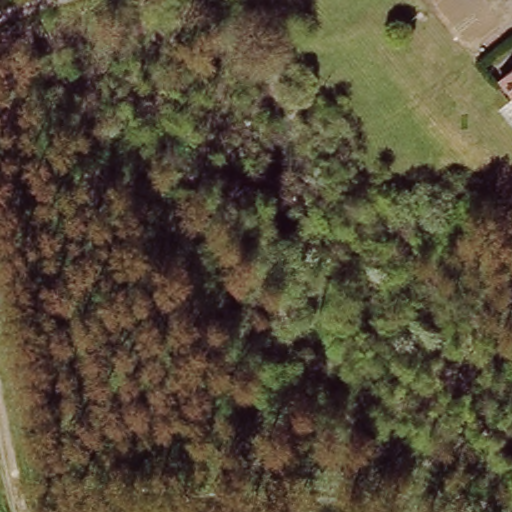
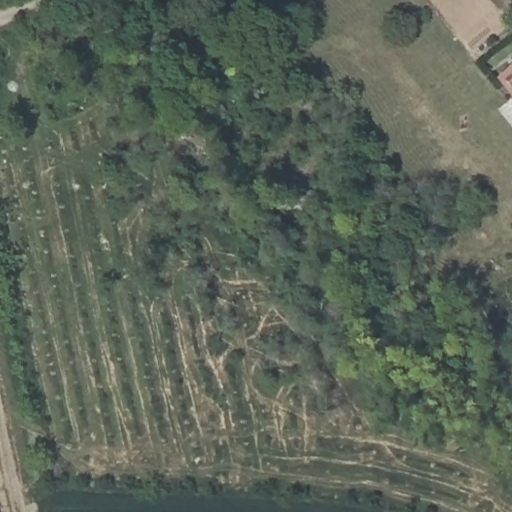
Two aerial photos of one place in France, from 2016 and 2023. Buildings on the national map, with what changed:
unchanged [(512,95),(500,80),(512,70),(512,95)]

